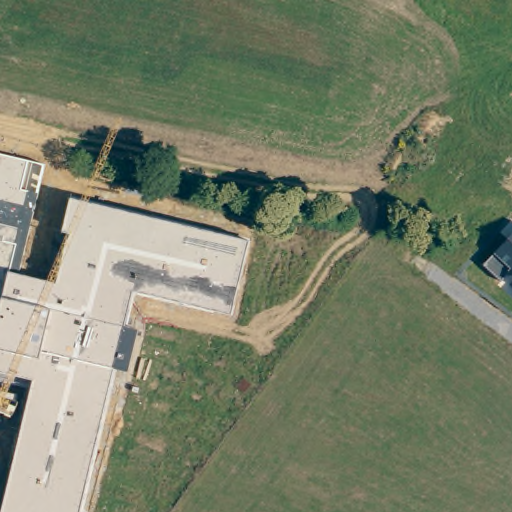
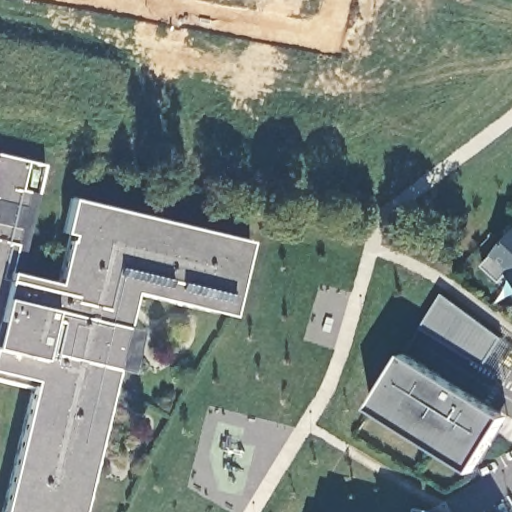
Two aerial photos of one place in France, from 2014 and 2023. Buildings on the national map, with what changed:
unchanged [(29,162),(21,191),(37,194),(20,276),(57,286),(67,242),(71,242),(73,236),(62,232),(70,199),(249,240),(231,316),(133,292),(125,326),(140,330),(129,373),(115,370),(86,492),(96,496),(91,512),(3,512),(37,380),(0,372),(0,156),(29,162)]
unchanged [(512,277),(508,272),(499,282),(482,267),(512,237),(512,277)]
new [(440,292),(500,336),(482,365),(419,326),(440,292)]
new [(474,471),(372,407),(406,353),(507,417),(474,471)]

